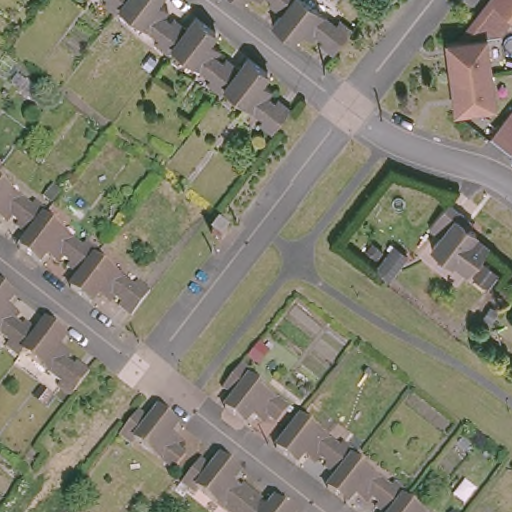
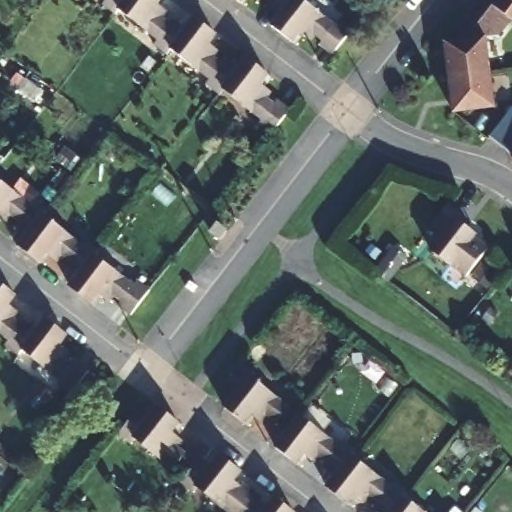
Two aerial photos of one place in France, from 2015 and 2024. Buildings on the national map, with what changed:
unchanged [(103,8),(107,3),(103,0),(129,0),(119,12),(116,17),(103,8)]
unchanged [(157,49),(160,44),(119,12),(129,0),(162,0),(158,6),(170,16),(166,22),(173,28),(176,24),(187,32),(171,53),(168,58),(157,49)]
unchanged [(240,6),(232,0),(244,0),(240,6)]
unchanged [(260,6),(252,0),(265,0),(260,6)]
unchanged [(280,17),(268,7),(270,4),(265,0),(293,0),(280,17)]
unchanged [(271,29),(280,17),(293,0),(299,0),(336,29),(340,23),(351,32),(331,57),(321,49),(324,45),(317,40),(312,46),(299,36),(292,45),(271,29)]
unchanged [(486,25),(491,61),(496,97),(456,103),(454,96),(459,95),(458,87),(453,88),(450,67),(446,48),(452,47),(450,38),(445,39),(444,31),(458,29),(480,0),(512,0),(512,8),(500,23),(486,25)]
unchanged [(209,90),(212,84),(171,53),(187,32),(196,21),(199,24),(200,24),(204,27),(217,37),(209,47),(222,57),(218,63),(224,68),(227,64),(238,73),(237,75),(223,92),(219,98),(209,90)]
unchanged [(237,75),(238,73),(247,61),(268,77),(260,86),(274,97),(269,104),(274,108),(277,103),(288,112),(269,137),(259,128),(262,123),(223,92),(237,75)]
unchanged [(512,111),(512,148),(494,134),(512,111)]
unchanged [(31,205),(35,200),(46,209),(43,213),(27,233),(15,224),(18,219),(12,214),(6,221),(0,216),(0,180),(31,205)]
unchanged [(472,278),(455,266),(454,269),(435,254),(444,242),(433,232),(449,214),(453,209),(469,222),(477,228),(473,233),(479,237),(476,241),(492,253),(472,278)]
unchanged [(84,245),(87,241),(98,250),(95,254),(80,274),(67,264),(70,260),(64,255),(58,261),(47,252),(39,261),(18,245),(27,233),(43,213),(84,245)]
unchanged [(203,242),(212,230),(224,239),(214,251),(203,242)]
unchanged [(71,286),(80,274),(95,254),(134,285),(139,280),(151,289),(131,314),(119,305),(122,300),(115,295),(110,302),(97,292),(90,301),(71,286)]
unchanged [(13,287),(6,296),(18,307),(13,313),(20,319),(23,314),(35,324),(20,343),(16,348),(4,339),(8,333),(0,327),(0,276),(13,287)]
unchanged [(35,324),(45,311),(65,327),(57,337),(71,348),(66,354),(72,359),(75,354),(87,364),(69,389),(58,380),(61,375),(20,343),(35,324)]
unchanged [(273,421),(265,415),(260,421),(247,412),(241,422),(220,405),(229,393),(217,384),(236,360),(248,369),(243,375),(284,405),(273,421)]
unchanged [(179,425),(172,434),(183,444),(178,450),(185,456),(174,471),(134,440),(130,445),(118,436),(137,412),(149,421),(158,409),(179,425)]
unchanged [(334,444),(339,439),(352,449),(347,455),(331,475),(318,465),(322,461),(315,456),(310,461),(299,453),(292,462),(283,454),(272,446),(296,415),(334,444)]
unchanged [(390,479),(402,489),(398,494),(384,512),(378,512),(370,505),(373,501),(366,496),(361,502),(349,492),(343,501),(335,495),(323,486),(331,475),(347,455),(386,485),(390,479)]
unchanged [(239,483),(246,489),(248,486),(268,501),(266,504),(273,509),(271,512),(231,512),(202,488),(198,494),(186,485),(205,459),(217,469),(226,458),(246,474),(239,483)]
unchanged [(384,512),(398,494),(421,512),(384,512)]
unchanged [(280,500),(295,512),(271,512),(273,509),(280,500)]

